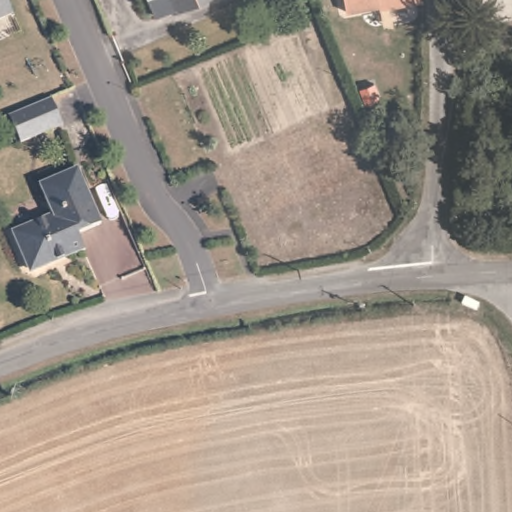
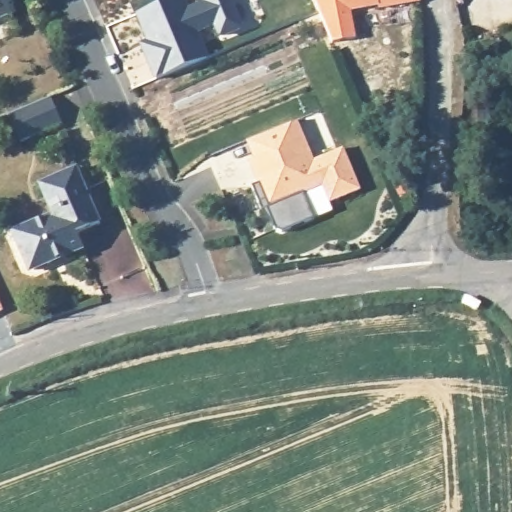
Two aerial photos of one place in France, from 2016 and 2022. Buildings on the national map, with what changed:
unchanged [(14,16),(0,21),(0,0),(7,0),(14,16)]
new [(171,0),(185,0),(188,8),(204,2),(203,0),(232,0),(242,24),(240,30),(223,37),(216,35),(212,26),(198,31),(209,57),(154,79),(140,44),(145,42),(136,15),(171,0)]
demolished [(157,17),(150,0),(195,0),(157,17)]
unchanged [(340,0),(422,0),(381,9),(379,5),(352,12),(343,13),(340,0)]
unchanged [(52,102),(64,130),(22,147),(11,119),(52,102)]
new [(329,203),(322,186),(304,193),(314,218),(278,232),(272,225),(263,213),(251,185),(258,182),(249,160),(254,157),(247,141),(297,120),(314,160),(344,148),(361,190),(329,203)]
unchanged [(97,221),(74,231),(80,247),(65,253),(60,251),(50,255),(48,260),(30,268),(24,265),(8,228),(49,211),(36,181),(74,165),(97,221)]

